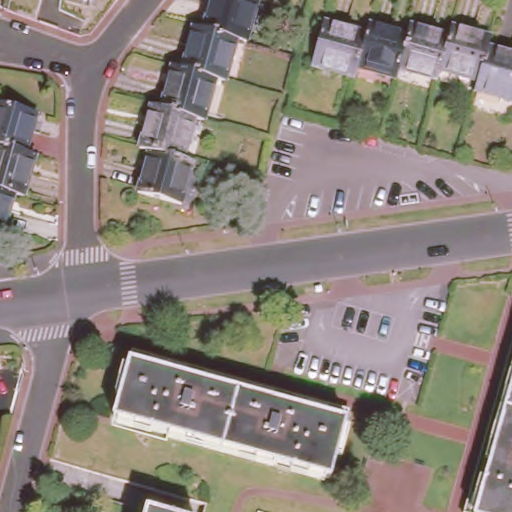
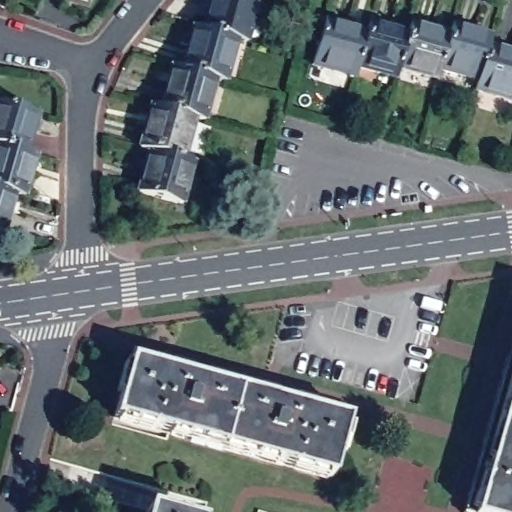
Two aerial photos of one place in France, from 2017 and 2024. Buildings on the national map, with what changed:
unchanged [(258,0),(249,36),(240,35),(205,25),(212,0),(258,0)]
unchanged [(197,22),(205,25),(240,35),(229,77),(220,74),(185,65),(197,22)]
unchanged [(350,78),(310,66),(322,23),(364,35),(354,69),(350,78)]
unchanged [(393,80),(354,69),(364,35),(366,25),(405,36),(397,70),(393,80)]
unchanged [(436,81),(397,70),(405,36),(408,27),(447,37),(439,71),(436,81)]
unchanged [(447,37),(450,28),(489,38),(487,48),(477,82),(439,71),(447,37)]
unchanged [(475,91),(477,82),(487,48),(512,55),(512,102),(475,91)]
unchanged [(175,62),(185,65),(220,74),(207,118),(198,115),(163,105),(175,62)]
unchanged [(24,149),(0,142),(0,99),(35,109),(24,149)]
unchanged [(154,102),(163,105),(198,115),(186,158),(152,148),(142,146),(154,102)]
unchanged [(0,142),(24,149),(34,152),(22,193),(12,190),(0,186),(0,142)]
unchanged [(185,202),(140,189),(152,148),(186,158),(196,160),(185,202)]
unchanged [(0,228),(0,186),(12,190),(0,228)]
unchanged [(512,339),(512,512),(464,512),(512,339)]
unchanged [(110,423),(130,355),(346,416),(328,484),(110,423)]
unchanged [(145,510),(155,512),(145,512),(145,510)]

